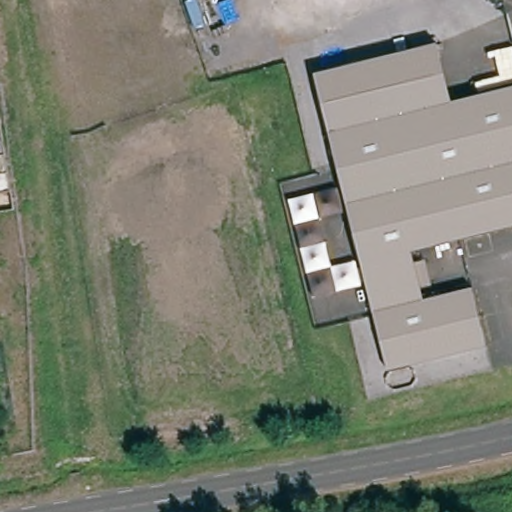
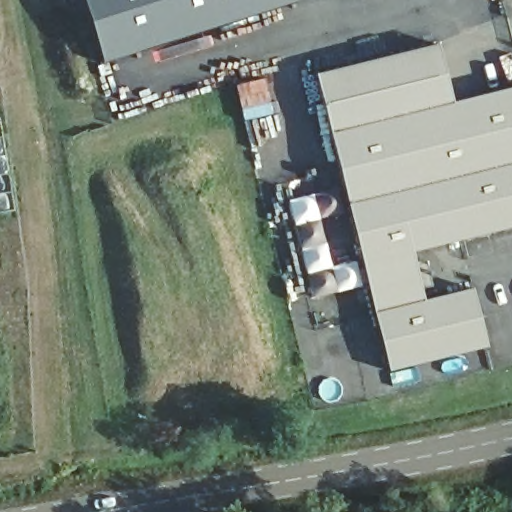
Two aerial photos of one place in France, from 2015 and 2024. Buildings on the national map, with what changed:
new [(100,63),(79,0),(300,0),(100,63)]
unchanged [(316,77),(438,46),(453,104),(331,135),(316,77)]
new [(265,77),(275,112),(243,120),(234,84),(265,77)]
unchanged [(512,89),(512,228),(413,253),(426,301),(474,289),(489,347),(391,372),(331,135),(453,104),(512,89)]

